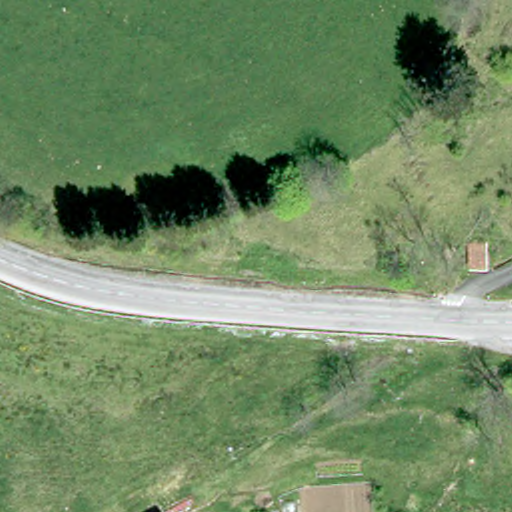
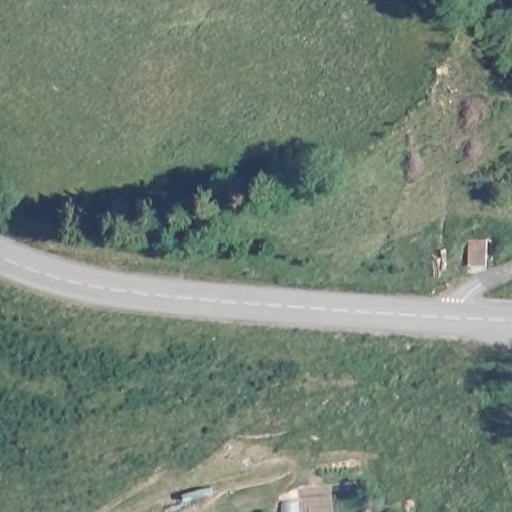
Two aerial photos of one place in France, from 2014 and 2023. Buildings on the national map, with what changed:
unchanged [(472,243),(485,243),(484,264),(470,263),(472,243)]

